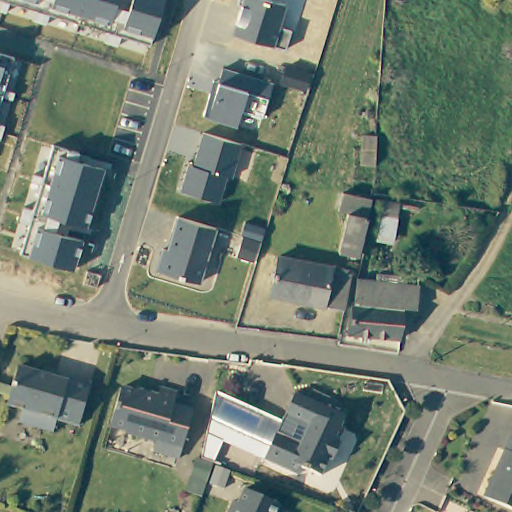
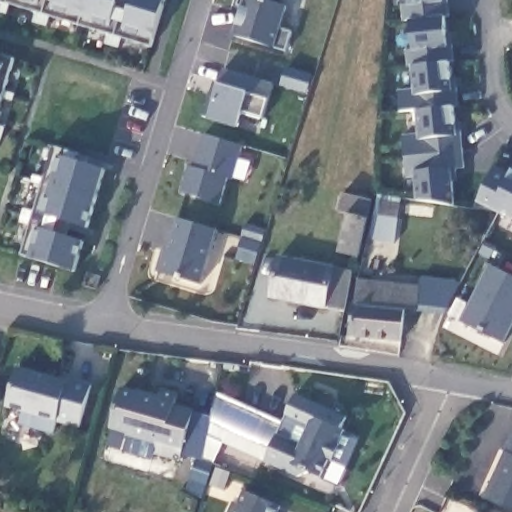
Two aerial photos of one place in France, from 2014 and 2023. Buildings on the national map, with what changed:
unchanged [(153,39),(151,46),(0,0),(165,0),(153,39)]
unchanged [(285,5),(280,27),(291,31),(286,50),(274,47),(233,35),(243,6),(238,4),(239,0),(271,0),(285,5)]
new [(450,15),(444,16),(446,31),(451,33),(455,61),(449,62),(451,77),(456,77),(459,105),(454,106),(457,122),(461,122),(465,167),(457,168),(457,179),(453,180),(455,205),(417,200),(414,177),(407,177),(404,135),(419,134),(417,109),(401,111),(398,89),(414,88),(412,65),(408,65),(406,49),(413,48),(410,20),(404,20),(403,6),(407,5),(407,0),(448,0),(450,15)]
unchanged [(0,105),(0,54),(14,58),(0,105)]
unchanged [(274,83),(264,118),(241,112),(236,127),(203,117),(214,81),(219,82),(223,68),(274,83)]
unchanged [(242,145),(232,180),(226,179),(220,202),(180,192),(188,165),(195,166),(204,134),(242,145)]
unchanged [(80,154),(79,161),(105,169),(89,227),(70,222),(66,236),(84,240),(75,270),(30,257),(22,255),(54,146),(80,154)]
new [(511,176),(512,172),(512,219),(493,210),(474,209),(494,168),(511,176)]
unchanged [(340,254),(347,218),(337,213),(344,192),(373,200),(362,260),(340,254)]
unchanged [(378,215),(399,217),(397,246),(376,242),(378,215)]
unchanged [(217,229),(202,285),(156,272),(162,248),(168,249),(177,217),(217,229)]
unchanged [(268,297),(274,259),(346,271),(339,310),(268,297)]
new [(490,264),(512,275),(512,316),(507,326),(511,329),(503,343),(461,322),(490,264)]
unchanged [(356,302),(359,276),(418,282),(417,307),(403,306),(356,302)]
new [(418,282),(421,282),(421,276),(456,279),(456,281),(461,282),(447,308),(417,304),(418,282)]
unchanged [(356,302),(403,306),(400,341),(347,337),(351,302),(356,302)]
unchanged [(56,417),(54,428),(19,420),(21,409),(5,406),(13,367),(53,376),(51,384),(61,386),(64,374),(87,379),(78,422),(56,417)]
unchanged [(156,450),(159,440),(109,427),(118,390),(126,392),(129,390),(155,396),(158,383),(176,388),(173,403),(192,408),(181,456),(156,450)]
unchanged [(262,461),(275,430),(301,442),(309,423),(286,413),(295,391),(344,413),(338,427),(345,431),(332,462),(327,460),(321,474),(310,469),(306,480),(262,461)]
unchanged [(309,423),(301,442),(275,430),(262,461),(224,443),(216,461),(204,456),(208,435),(217,392),(282,421),(286,413),(309,423)]
unchanged [(484,479),(488,480),(506,438),(512,441),(512,512),(501,512),(475,501),(484,479)]
unchanged [(207,497),(199,494),(192,492),(203,461),(206,462),(218,466),(207,497)]
unchanged [(236,510),(243,493),(280,511),(280,512),(229,512),(231,508),(236,510)]

